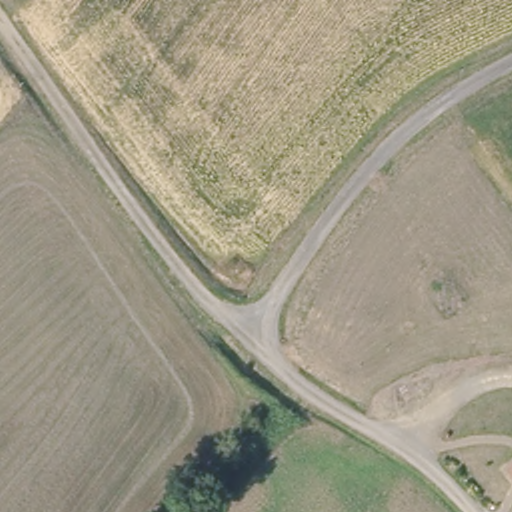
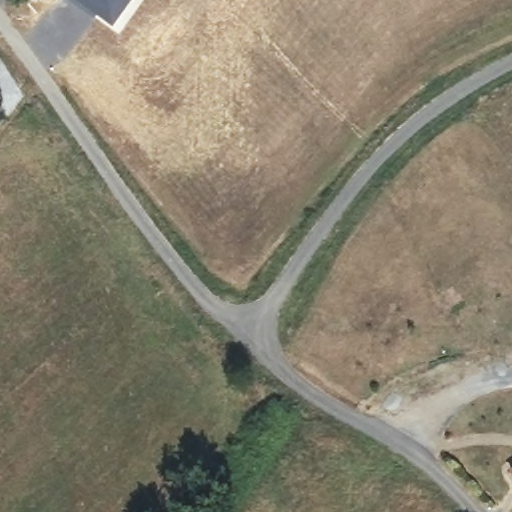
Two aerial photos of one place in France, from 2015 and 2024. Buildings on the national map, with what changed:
new [(112,25),(75,0),(130,0),(112,25)]

